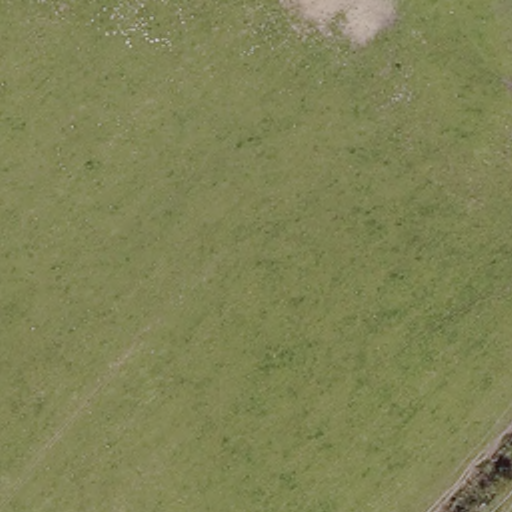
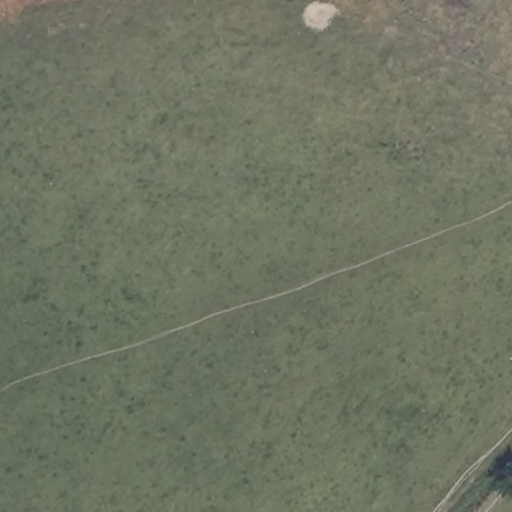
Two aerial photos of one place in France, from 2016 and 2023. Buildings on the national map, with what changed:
[]

